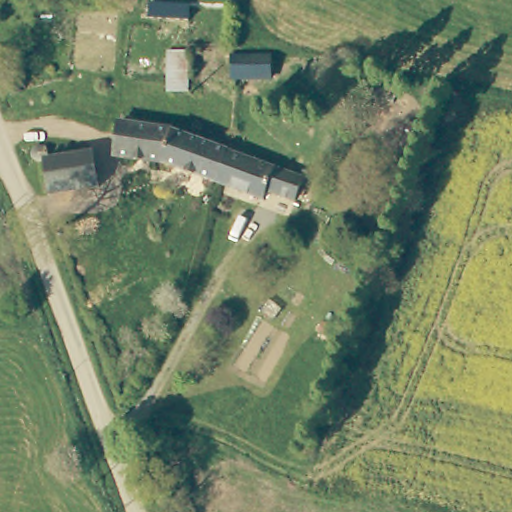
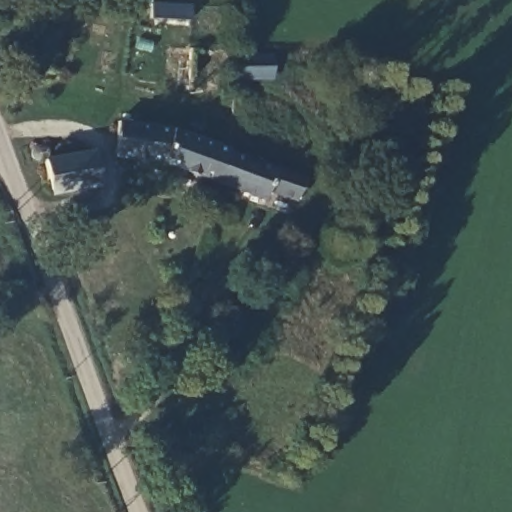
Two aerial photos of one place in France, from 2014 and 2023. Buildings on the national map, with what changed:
unchanged [(194,5),(194,19),(155,16),(155,2),(194,5)]
unchanged [(272,52),(271,75),(240,75),(237,75),(236,51),(272,52)]
unchanged [(170,162),(120,151),(126,117),(183,125),(235,144),(234,149),(225,181),(170,162)]
unchanged [(52,145),(55,155),(100,149),(106,184),(57,194),(50,157),(39,160),(35,149),(38,145),(40,142),(48,142),(52,145)]
unchanged [(234,149),(307,174),(301,195),(272,185),(270,194),(225,181),(234,149)]

